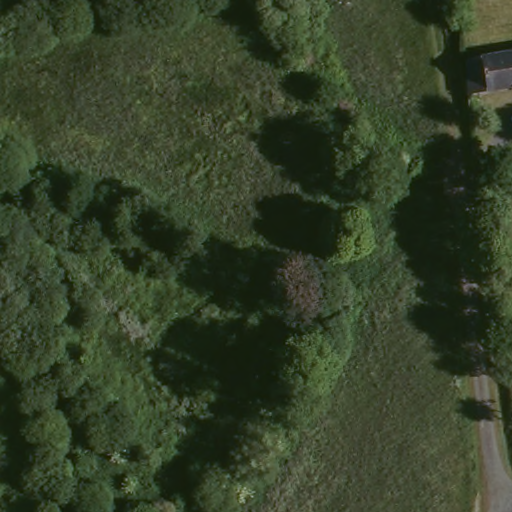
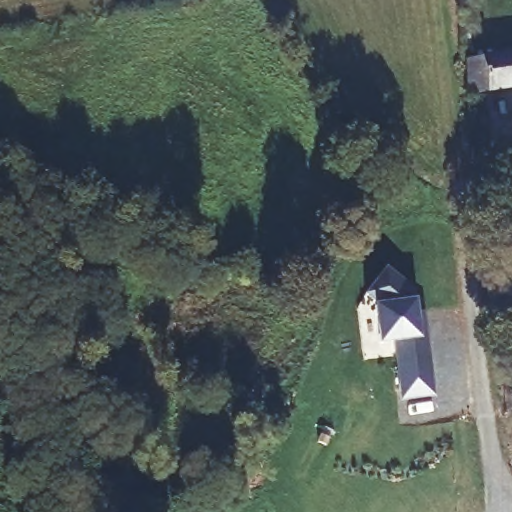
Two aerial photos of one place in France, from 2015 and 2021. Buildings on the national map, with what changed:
unchanged [(484,101),(480,84),(476,50),(512,46),(512,79),(494,82),(497,99),(484,101)]
new [(410,291),(413,314),(420,312),(426,350),(433,396),(401,400),(392,343),(377,345),(372,308),(374,307),(373,304),(362,296),(382,270),(410,291)]

